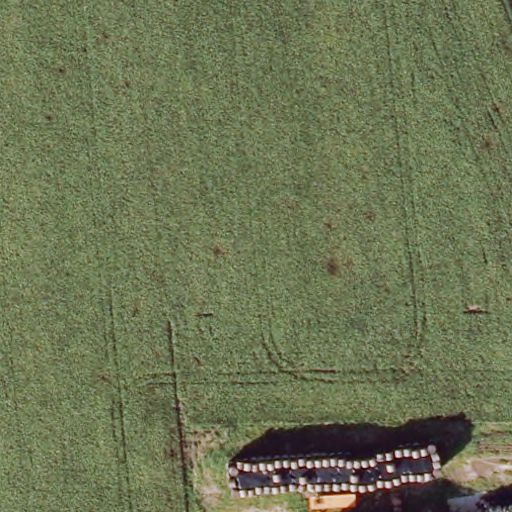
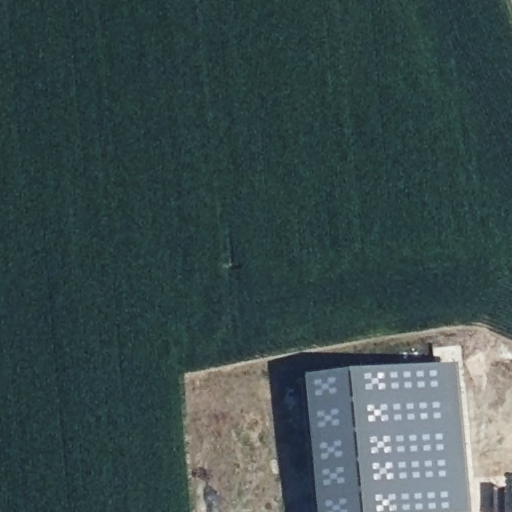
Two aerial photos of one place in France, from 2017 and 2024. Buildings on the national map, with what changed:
new [(468,512),(311,512),(299,382),(452,367),(468,512)]

